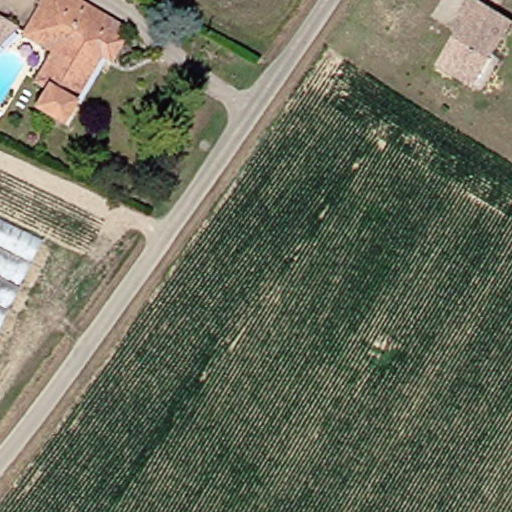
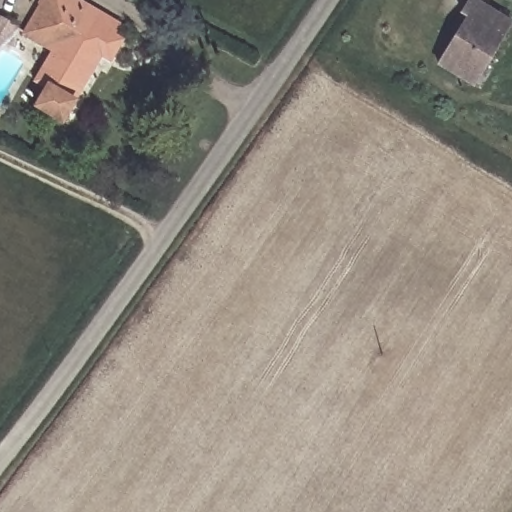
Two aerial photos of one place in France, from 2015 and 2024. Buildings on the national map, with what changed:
unchanged [(77,99),(81,101),(71,122),(42,108),(54,85),(45,80),(58,53),(26,36),(44,0),(69,0),(83,7),(106,19),(102,27),(120,37),(110,58),(100,53),(77,99)]
unchanged [(457,75),(438,64),(467,16),(461,12),(462,11),(468,0),(476,0),(494,11),(510,20),(480,71),(472,84),(457,75)]
unchanged [(15,24),(0,40),(0,17),(15,24)]
demolished [(45,239),(20,289),(0,280),(0,217),(45,239)]
demolished [(20,289),(0,327),(0,280),(20,289)]

